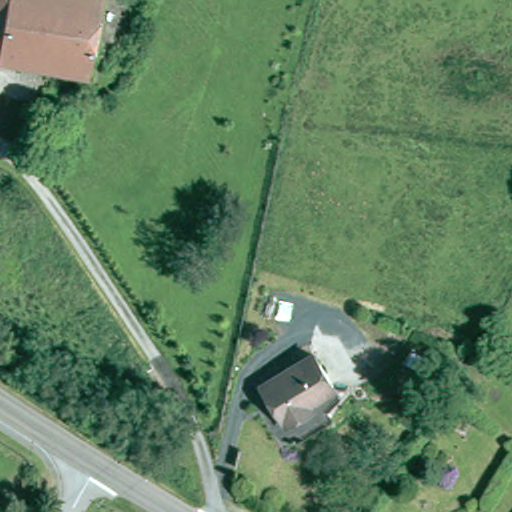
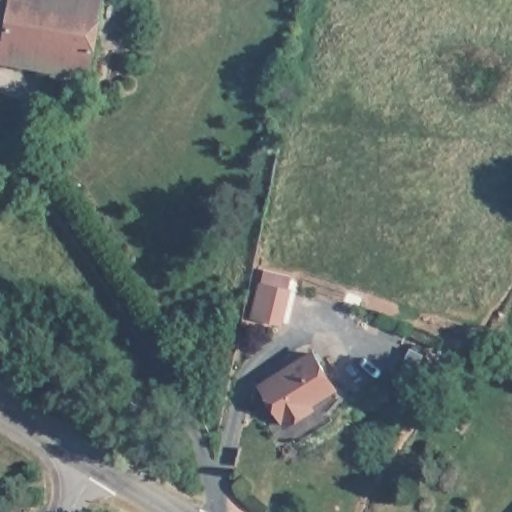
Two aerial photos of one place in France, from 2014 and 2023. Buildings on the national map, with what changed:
unchanged [(91,76),(68,72),(0,60),(0,0),(104,0),(91,76)]
new [(262,285),(265,272),(291,278),(288,290),(289,291),(281,323),(254,317),(261,284),(262,285)]
unchanged [(305,414),(286,426),(261,386),(314,352),(335,388),(310,404),(313,409),(305,414)]

